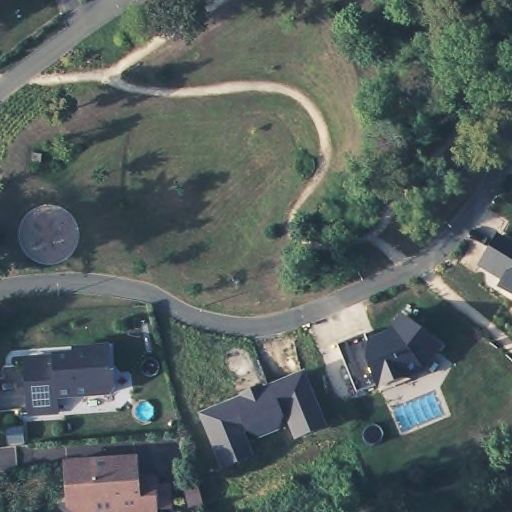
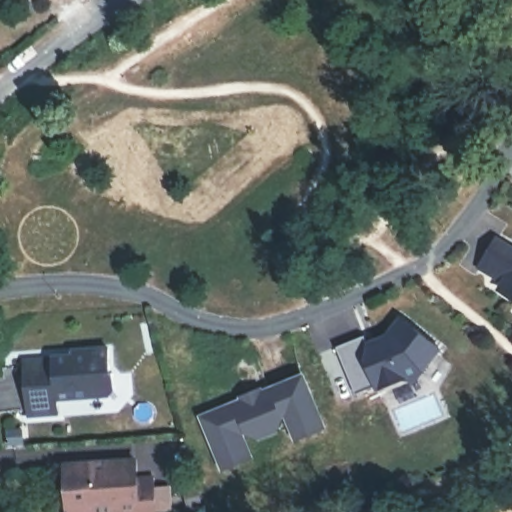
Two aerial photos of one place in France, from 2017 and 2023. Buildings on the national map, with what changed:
unchanged [(512,247),(512,298),(500,290),(505,284),(478,268),(497,239),(512,247)]
unchanged [(442,350),(415,383),(409,381),(377,392),(373,385),(355,392),(338,345),(365,334),(368,340),(389,331),(397,316),(442,350)]
unchanged [(50,361),(50,360),(85,357),(85,352),(107,350),(108,375),(111,375),(112,391),(107,397),(55,401),(55,416),(25,418),(21,363),(50,361)]
unchanged [(295,441),(285,420),(280,433),(257,440),(243,433),(253,460),(222,472),(199,413),(302,372),(325,427),(295,441)]
unchanged [(71,512),(68,467),(98,465),(98,468),(108,467),(108,465),(138,462),(140,481),(155,480),(157,512),(71,512)]

